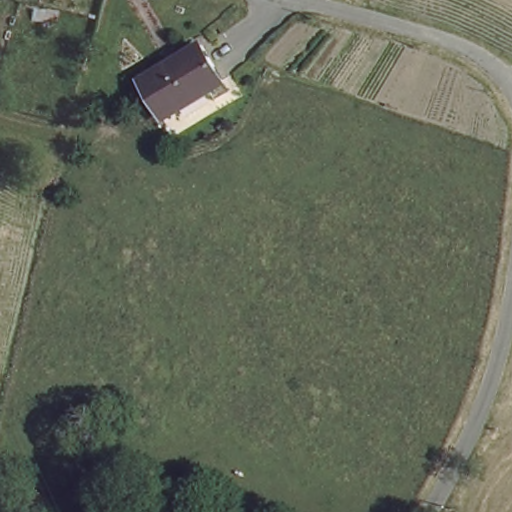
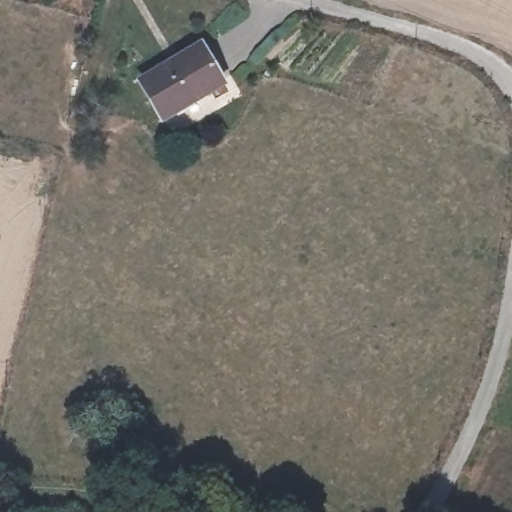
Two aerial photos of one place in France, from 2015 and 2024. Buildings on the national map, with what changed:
unchanged [(227,81),(166,112),(145,73),(205,41),(227,81)]

